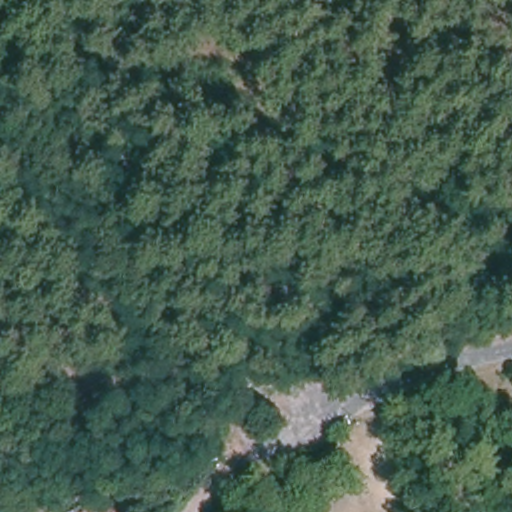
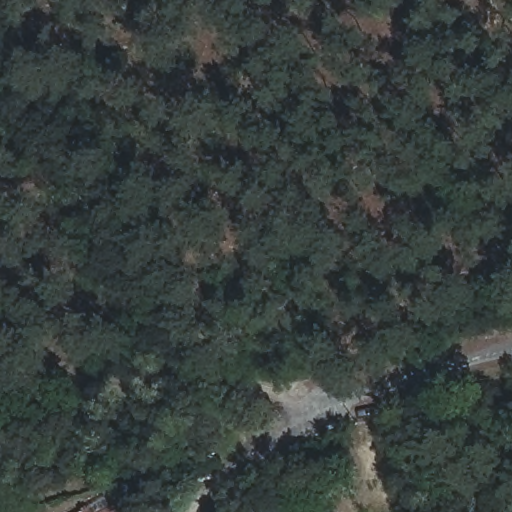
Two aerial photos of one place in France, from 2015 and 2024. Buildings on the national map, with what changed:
unchanged [(115,512),(111,512),(114,510),(115,512)]
unchanged [(87,512),(89,511),(90,512),(87,512)]

